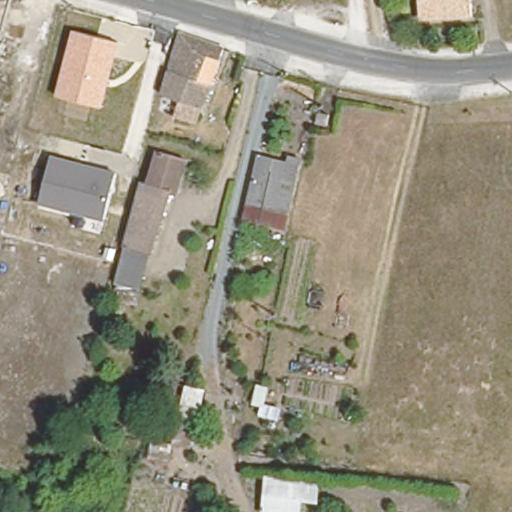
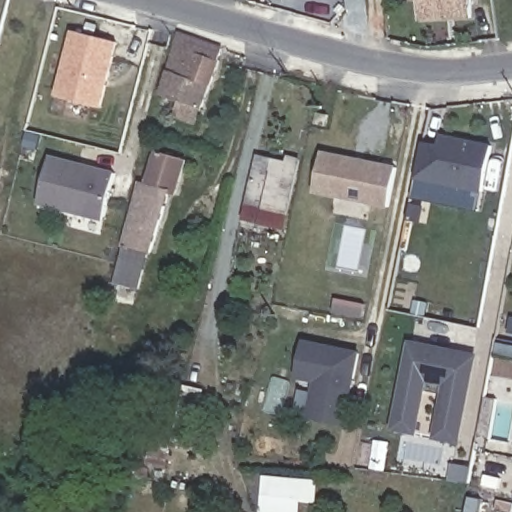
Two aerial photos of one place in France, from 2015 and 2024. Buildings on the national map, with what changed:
unchanged [(420,28),(419,0),(476,0),(476,26),(420,28)]
unchanged [(55,96),(72,29),(117,41),(103,108),(55,96)]
unchanged [(214,54),(197,114),(194,113),(190,126),(165,119),(170,101),(156,98),(173,39),(214,54)]
unchanged [(331,112),(330,123),(315,120),(316,109),(331,112)]
new [(483,193),(416,179),(423,143),(438,145),(440,134),(492,144),(483,193)]
new [(313,194),(322,150),(397,165),(388,209),(313,194)]
unchanged [(105,222),(39,204),(51,155),(116,172),(105,222)]
unchanged [(172,204),(164,203),(147,264),(142,263),(132,298),(111,292),(120,257),(116,255),(133,191),(142,194),(150,161),(180,169),(172,204)]
unchanged [(242,226),(247,206),(257,163),(298,174),(288,217),(283,235),(242,226)]
new [(345,427),(306,418),(314,383),(295,379),(303,339),(361,352),(345,427)]
new [(391,430),(409,339),(478,354),(460,444),(432,439),(443,386),(428,383),(417,436),(391,430)]
unchanged [(190,462),(151,457),(150,437),(175,442),(183,387),(197,388),(190,462)]
unchanged [(325,482),(321,505),(301,504),(301,512),(263,512),(266,476),(325,482)]

